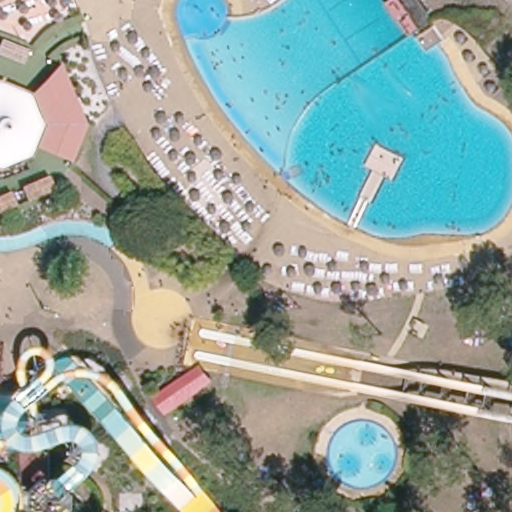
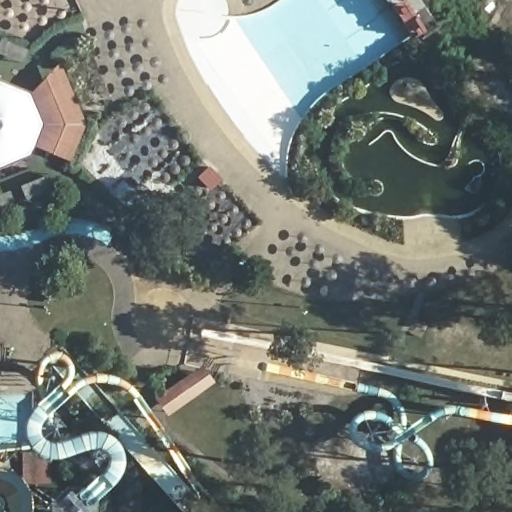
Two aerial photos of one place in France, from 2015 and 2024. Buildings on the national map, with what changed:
unchanged [(82,123),(67,160),(31,145),(40,122),(29,92),(56,61),(82,123)]
unchanged [(213,384),(165,418),(150,397),(200,361),(213,384)]

